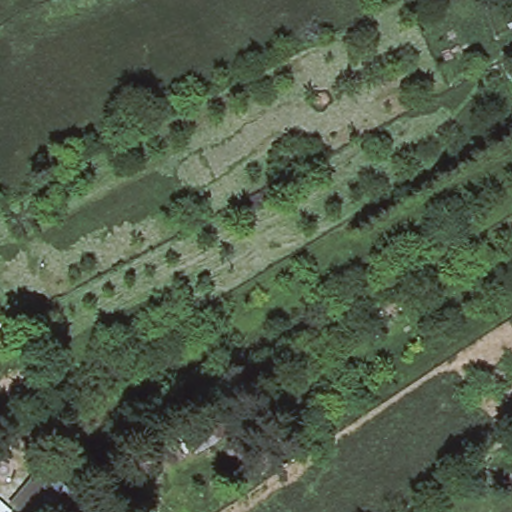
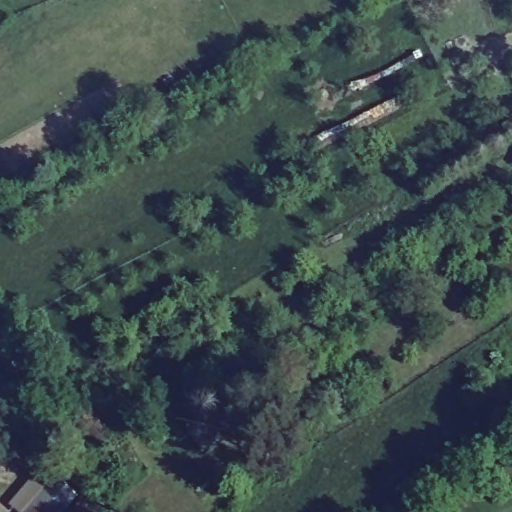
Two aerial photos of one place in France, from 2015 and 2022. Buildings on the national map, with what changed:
unchanged [(7,506),(36,471),(48,481),(52,478),(77,500),(66,512),(15,512),(7,506)]

